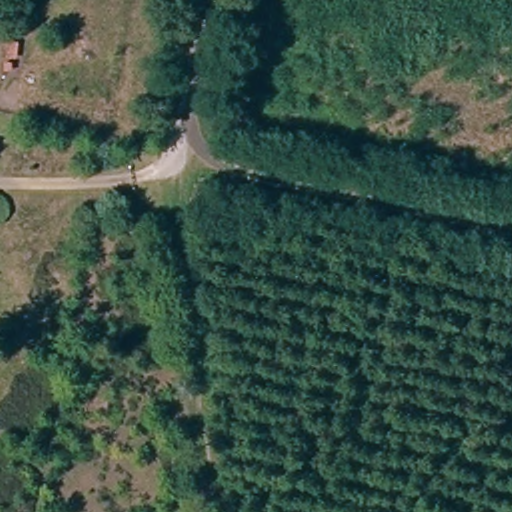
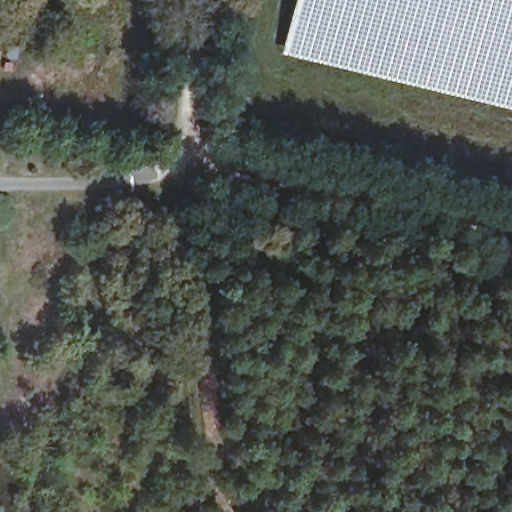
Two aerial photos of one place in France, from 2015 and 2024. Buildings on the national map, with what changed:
new [(294,0),(512,0),(512,110),(282,55),(294,0)]

